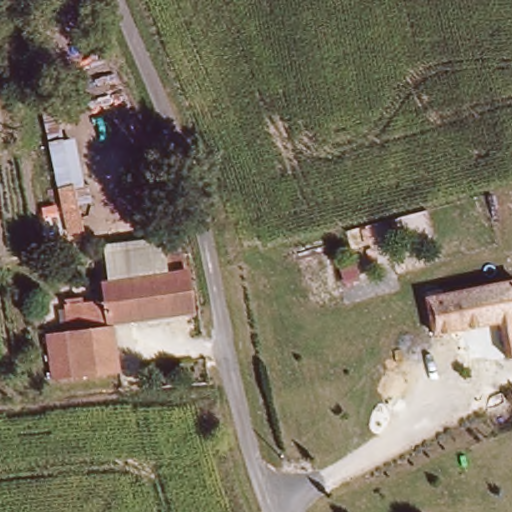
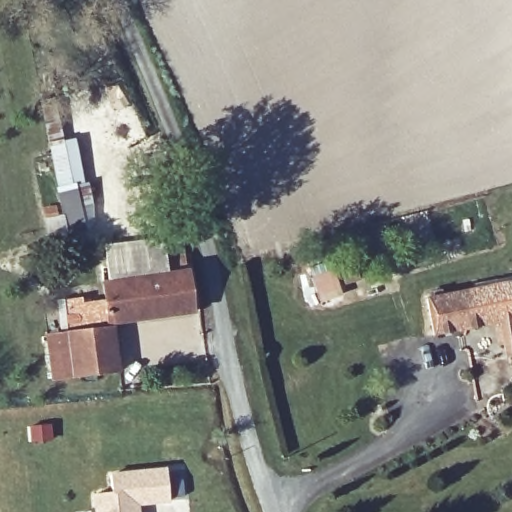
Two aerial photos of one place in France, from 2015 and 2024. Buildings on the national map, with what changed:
unchanged [(64,144),(80,142),(87,190),(77,190),(85,235),(69,236),(48,142),(62,140),(64,144)]
unchanged [(167,249),(169,265),(170,281),(113,287),(109,255),(167,249)]
unchanged [(115,329),(111,330),(108,301),(106,288),(113,287),(170,281),(169,265),(188,264),(190,276),(195,319),(115,329)]
unchanged [(500,325),(436,337),(429,301),(512,285),(512,359),(507,360),(500,325)]
unchanged [(68,336),(65,301),(83,300),(86,306),(108,301),(111,330),(115,375),(49,381),(44,336),(68,336)]
unchanged [(181,371),(181,365),(205,363),(207,388),(166,390),(155,391),(155,373),(166,372),(181,371)]
new [(169,469),(171,500),(139,503),(140,512),(98,512),(96,494),(114,492),(112,475),(169,469)]

